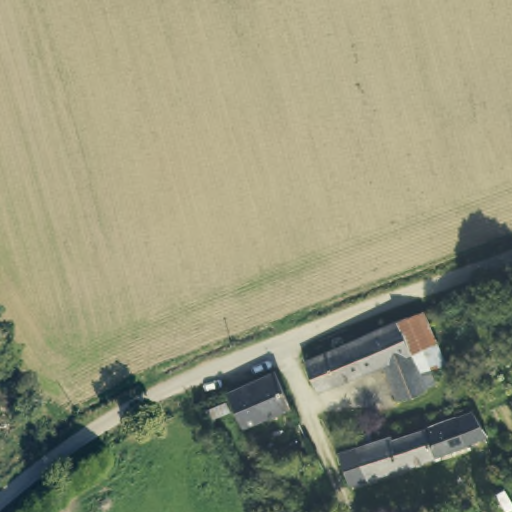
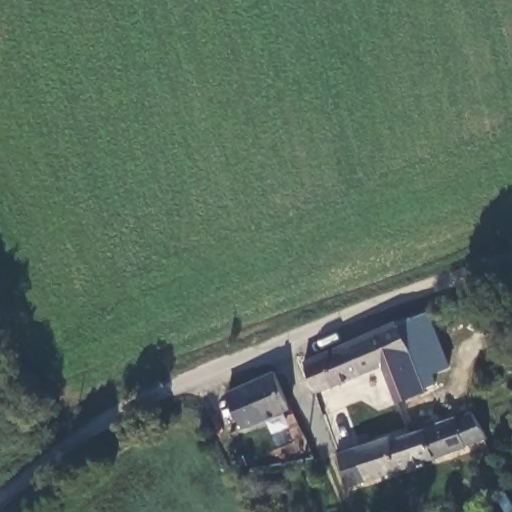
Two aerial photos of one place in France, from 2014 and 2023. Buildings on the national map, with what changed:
unchanged [(424,392),(426,396),(398,407),(383,372),(320,399),(305,362),(421,314),(436,344),(447,365),(428,373),(434,388),(424,392)]
unchanged [(291,407),(245,424),(242,425),(229,390),(278,370),(291,407)]
unchanged [(465,450),(350,487),(340,453),(392,437),(393,442),(476,416),(491,439),(465,450)]

